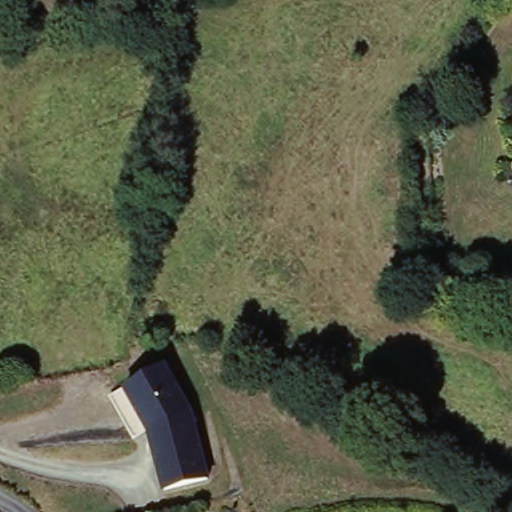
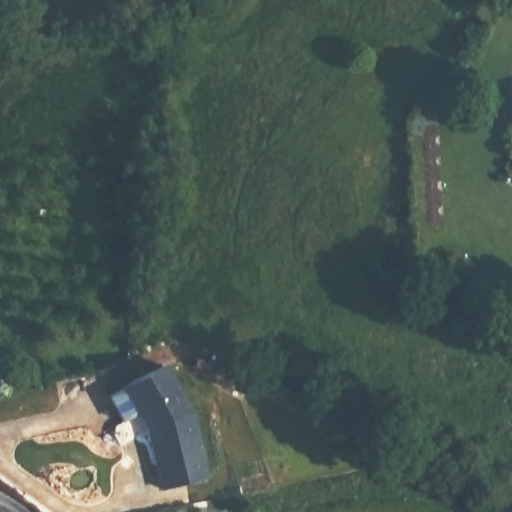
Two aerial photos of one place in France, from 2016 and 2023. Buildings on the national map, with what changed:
unchanged [(169,361),(204,412),(216,481),(161,488),(149,430),(124,386),(169,361)]

